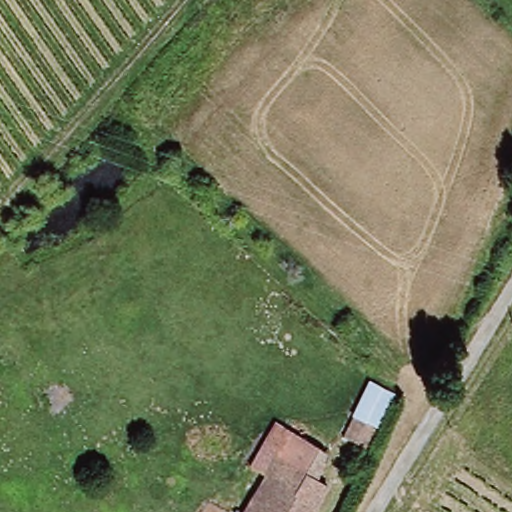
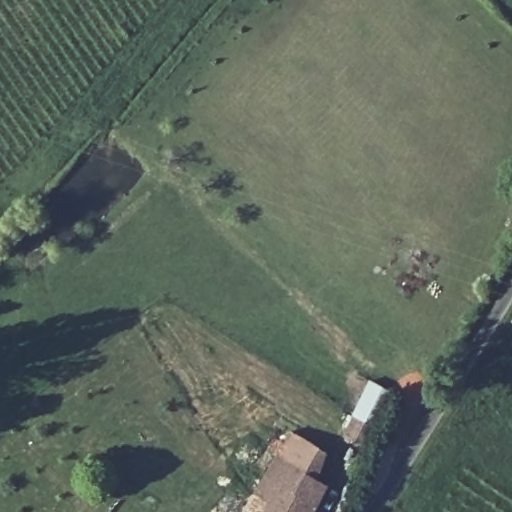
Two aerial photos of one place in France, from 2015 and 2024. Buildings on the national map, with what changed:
unchanged [(396,393),(370,448),(344,436),(370,380),(396,393)]
unchanged [(314,477),(277,455),(291,431),(329,453),(314,477)]
unchanged [(315,512),(243,512),(277,455),(314,477),(330,486),(315,512)]

